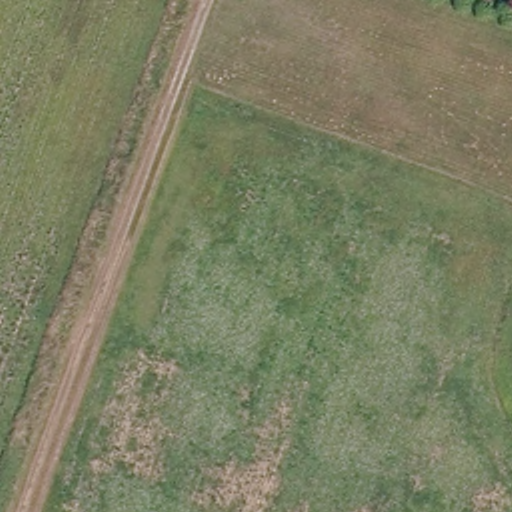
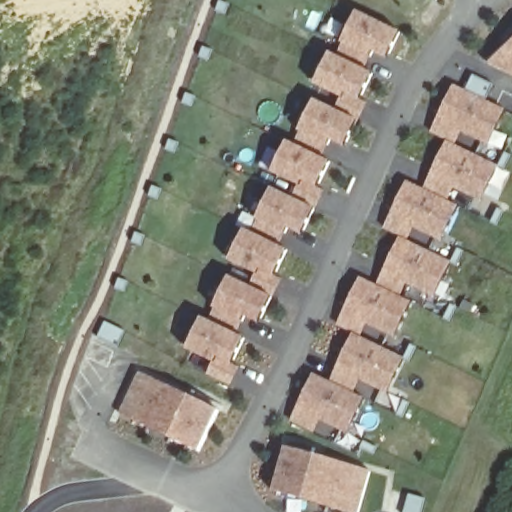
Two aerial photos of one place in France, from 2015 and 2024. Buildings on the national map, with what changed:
new [(401,32),(388,60),(373,53),(363,70),(372,75),(362,100),(367,104),(358,122),(345,147),(330,141),(328,146),(326,145),(320,156),(330,162),(319,187),(324,192),(314,209),(302,236),(287,230),(285,235),(282,234),(277,245),(288,251),(277,275),(282,279),(271,297),(258,325),(244,317),(242,322),(239,321),(231,333),(244,338),(233,362),(239,367),(231,384),(206,373),(210,362),(186,351),(202,318),(207,321),(229,276),(247,284),(253,273),(229,261),(244,230),(250,233),(273,189),(291,197),(296,186),(272,174),(288,141),(294,144),(315,98),(333,107),(339,97),(314,84),(329,52),(336,55),(342,43),(358,9),(401,32)]
new [(512,43),(512,74),(489,63),(512,43)]
new [(505,109),(488,144),(462,131),(455,143),(498,167),(481,201),(453,187),(446,201),(458,207),(442,241),(414,227),(407,238),(452,262),(434,297),(407,283),(400,296),(413,302),(395,337),(368,323),(362,336),(406,358),(388,393),(360,380),(354,392),(365,398),(347,433),(321,421),(315,432),(291,421),(314,375),(329,382),(356,334),(336,323),(359,276),(376,285),(402,236),(386,227),(407,181),(424,188),(448,140),(430,131),(453,84),(505,109)]
new [(219,410),(198,452),(118,413),(140,370),(219,410)]
new [(361,512),(349,512),(273,492),(286,446),(370,470),(361,512)]

